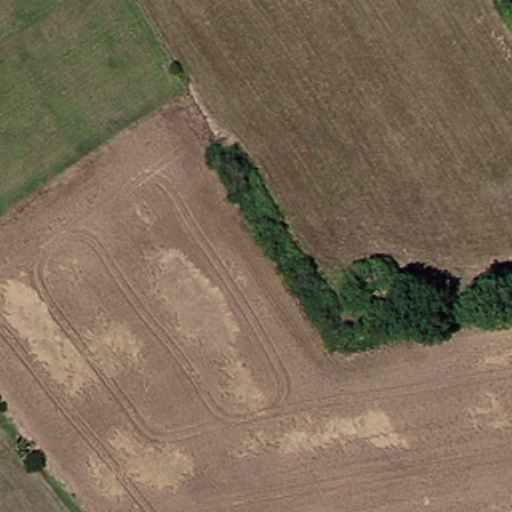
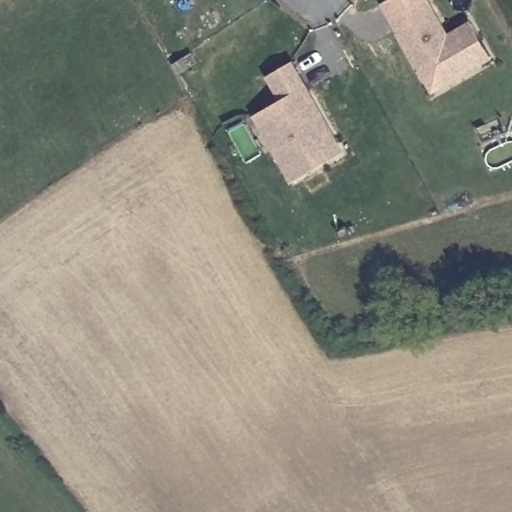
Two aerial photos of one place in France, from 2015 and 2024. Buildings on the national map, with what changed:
new [(392,22),(382,6),(392,0),(424,0),(426,3),(447,40),(455,36),(469,27),(488,61),(473,70),(439,89),(432,93),(421,72),(392,22)]
new [(333,160),(290,183),(280,164),(255,116),(268,109),(282,101),(269,77),(292,65),(305,89),(330,137),(341,157),(333,160)]

